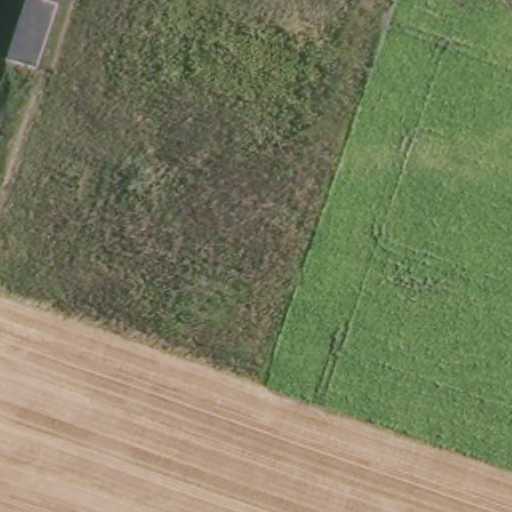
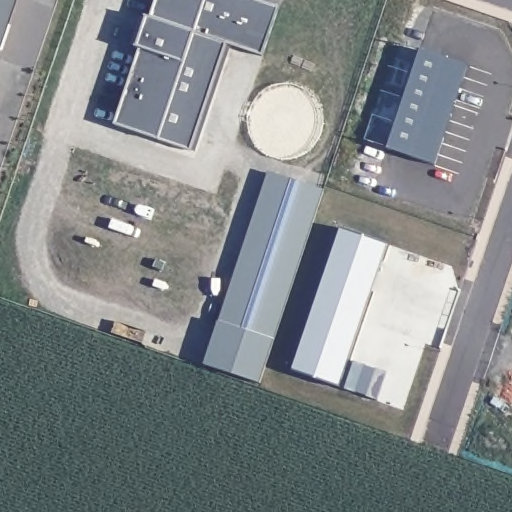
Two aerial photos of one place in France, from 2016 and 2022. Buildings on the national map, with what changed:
unchanged [(0,46),(0,0),(16,0),(0,46)]
new [(278,9),(262,58),(225,46),(190,153),(113,128),(156,0),(251,0),(278,9)]
new [(388,148),(421,50),(468,68),(436,162),(388,148)]
new [(266,174),(325,188),(260,384),(202,363),(266,174)]
new [(388,243),(348,362),(385,376),(373,403),(290,369),(336,228),(388,243)]

